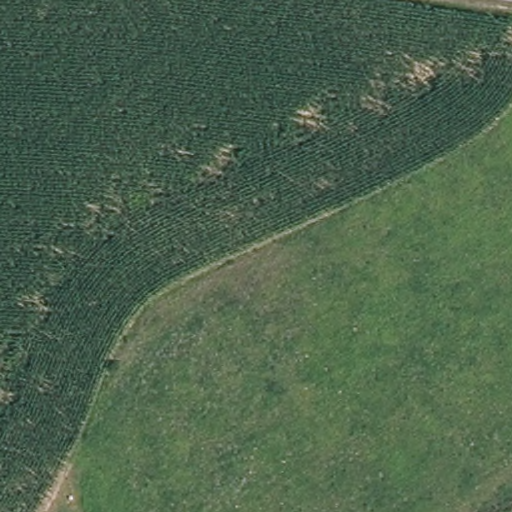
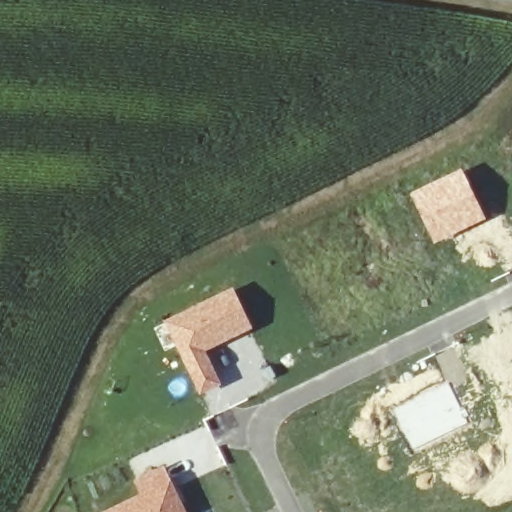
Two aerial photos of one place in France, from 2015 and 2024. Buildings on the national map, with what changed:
new [(435,244),(410,194),(461,169),(486,218),(435,244)]
new [(232,285),(253,328),(207,350),(222,385),(198,396),(161,320),(232,285)]
new [(414,450),(394,410),(447,382),(468,421),(414,450)]
new [(131,478),(162,463),(186,512),(101,512),(100,511),(138,492),(131,478)]

